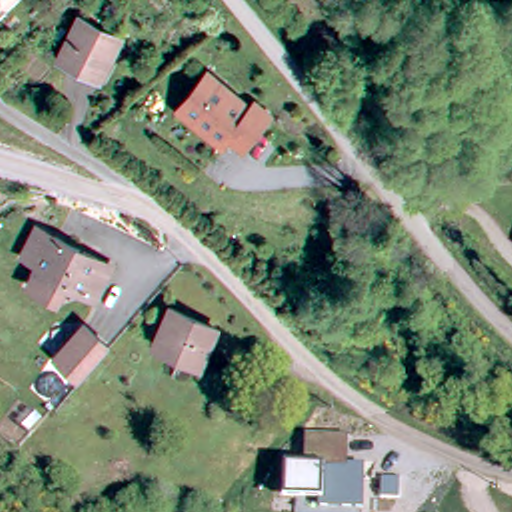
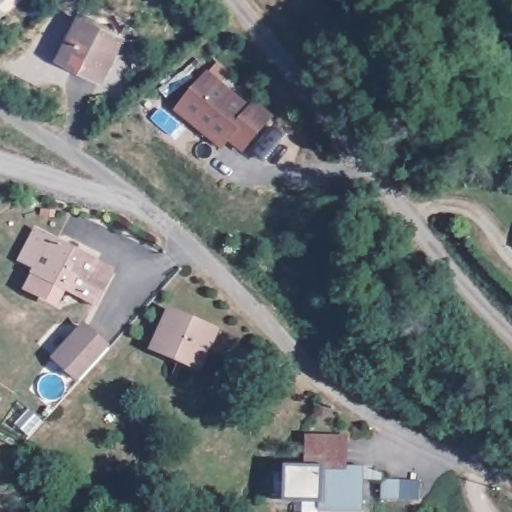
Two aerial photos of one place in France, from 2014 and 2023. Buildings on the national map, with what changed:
unchanged [(56,51),(76,13),(115,31),(96,71),(56,51)]
unchanged [(218,131),(215,136),(190,118),(187,122),(170,109),(196,75),(237,106),(241,100),(258,114),(236,144),(218,131)]
unchanged [(55,295),(23,278),(33,260),(18,251),(33,225),(92,255),(107,265),(92,293),(75,285),(75,288),(62,281),(55,295)]
unchanged [(148,348),(164,307),(210,325),(195,367),(148,348)]
unchanged [(52,355),(79,320),(103,340),(76,374),(52,355)]
unchanged [(288,468),(306,469),(307,434),(347,435),(347,465),(367,465),(366,512),(318,512),(318,505),(287,503),(288,468)]

